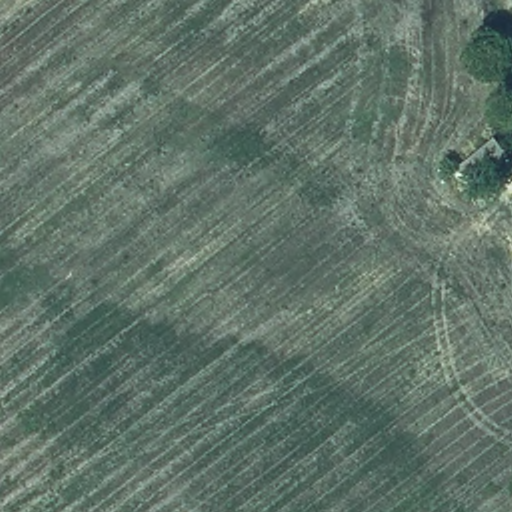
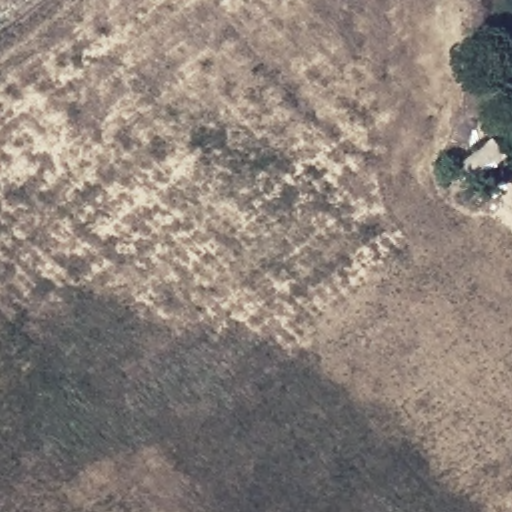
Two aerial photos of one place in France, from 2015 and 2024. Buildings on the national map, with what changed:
unchanged [(459,194),(444,177),(488,141),(502,158),(459,194)]

